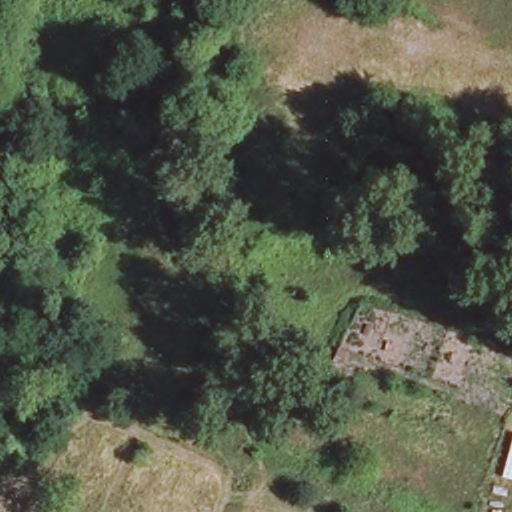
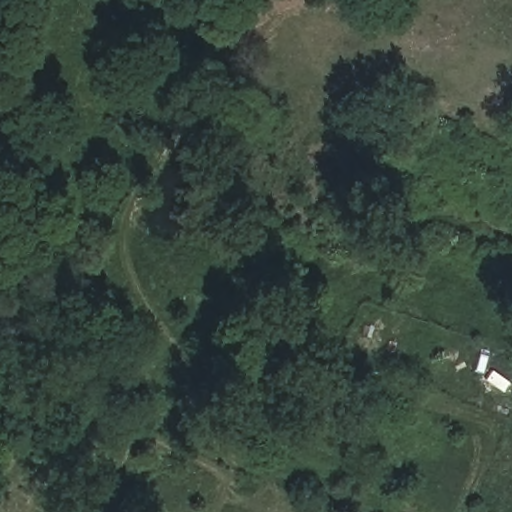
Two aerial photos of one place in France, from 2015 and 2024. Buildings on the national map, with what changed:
[]

